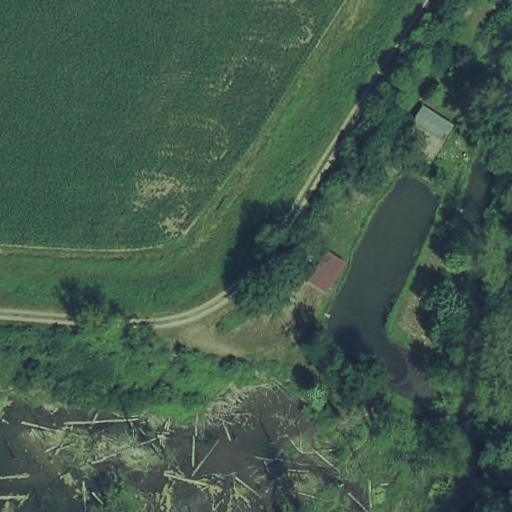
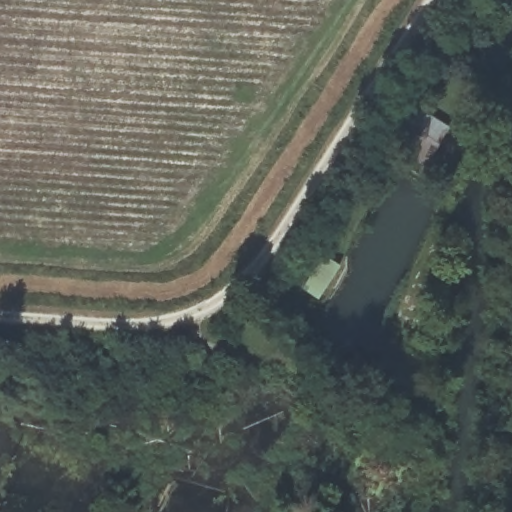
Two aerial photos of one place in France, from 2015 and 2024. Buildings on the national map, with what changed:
unchanged [(409,121),(441,142),(423,167),(392,147),(409,121)]

